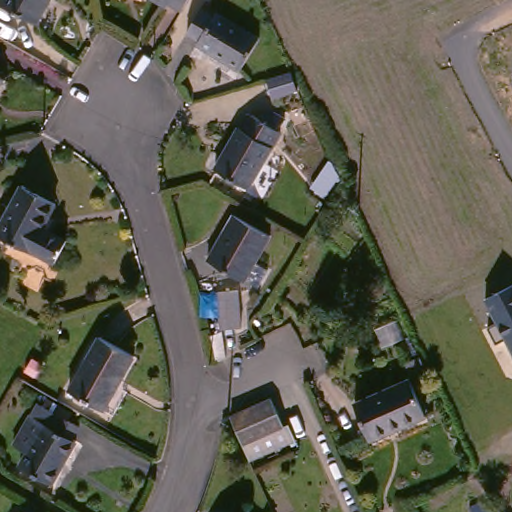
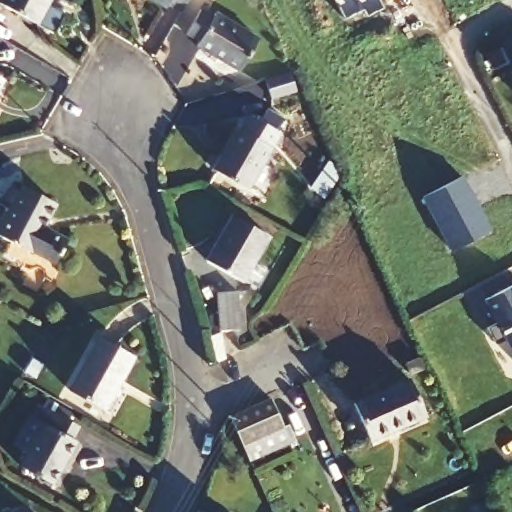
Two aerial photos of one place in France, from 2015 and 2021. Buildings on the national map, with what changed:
unchanged [(0,5),(0,0),(48,0),(34,25),(0,5)]
unchanged [(159,0),(169,0),(166,4),(159,0)]
unchanged [(169,0),(185,0),(180,9),(169,0)]
unchanged [(259,33),(239,65),(198,40),(201,35),(191,29),(205,6),(215,12),(219,7),(259,33)]
unchanged [(301,92),(276,100),(271,81),(296,72),(301,92)]
unchanged [(3,76),(0,81),(0,74),(3,76)]
unchanged [(246,193),(214,175),(235,134),(238,136),(246,123),(256,128),(262,115),(280,126),(274,137),(278,139),(246,193)]
new [(466,180),(494,234),(456,254),(428,199),(466,180)]
unchanged [(22,182),(49,196),(36,218),(18,246),(0,235),(0,226),(22,182)]
unchanged [(36,218),(49,196),(56,199),(43,225),(66,237),(55,261),(33,247),(29,252),(18,246),(36,218)]
unchanged [(271,237),(249,276),(213,253),(237,216),(271,237)]
new [(242,284),(244,321),(224,322),(223,285),(242,284)]
unchanged [(496,345),(487,327),(496,322),(484,300),(512,285),(512,353),(505,340),(496,345)]
unchanged [(134,357),(104,408),(71,388),(100,337),(134,357)]
unchanged [(409,375),(424,411),(373,436),(355,400),(409,375)]
unchanged [(274,405),(286,433),(243,452),(233,424),(274,405)]
unchanged [(79,427),(71,442),(76,446),(56,487),(21,468),(28,458),(11,450),(28,418),(34,422),(39,408),(79,427)]
unchanged [(496,512),(475,512),(474,509),(491,500),(496,512)]
unchanged [(24,512),(19,512),(21,510),(24,512)]

